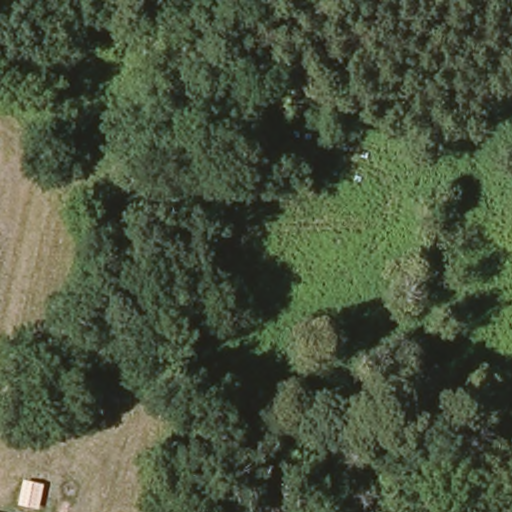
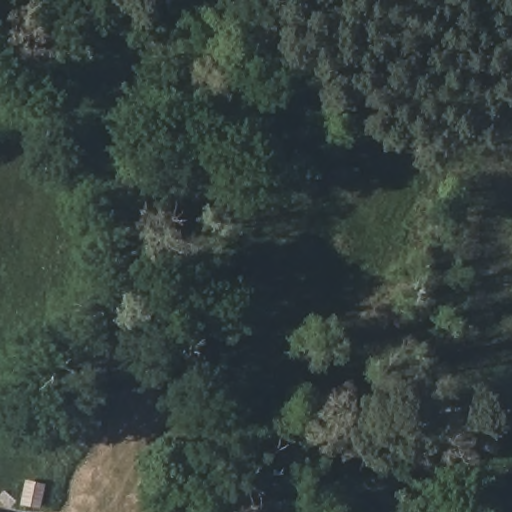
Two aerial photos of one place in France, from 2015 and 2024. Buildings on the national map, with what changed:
unchanged [(25,501),(28,484),(48,487),(45,505),(25,501)]

